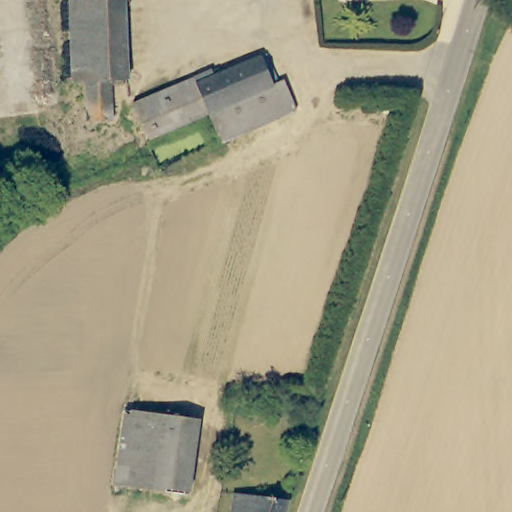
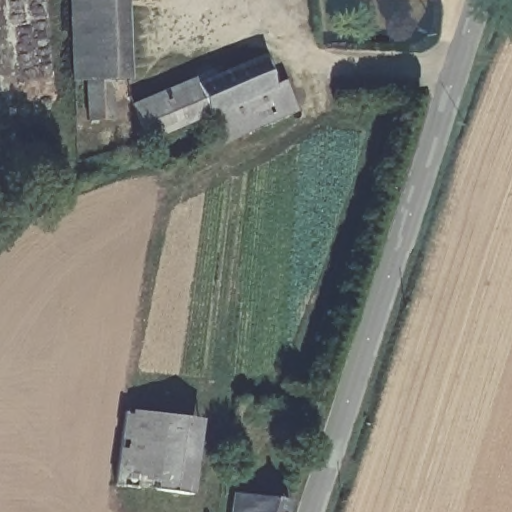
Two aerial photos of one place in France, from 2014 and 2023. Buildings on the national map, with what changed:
unchanged [(70,0),(125,0),(126,38),(126,74),(110,75),(112,115),(86,116),(86,102),(85,75),(73,76),(70,0)]
unchanged [(210,110),(146,138),(136,106),(212,72),(210,67),(217,65),(219,70),(263,51),(276,80),(210,110)]
unchanged [(292,107),(222,138),(210,110),(276,80),(283,77),(295,105),(296,106),(292,107)]
unchanged [(161,460),(197,464),(194,488),(119,479),(128,407),(167,412),(161,460)]
unchanged [(197,464),(161,460),(167,412),(202,416),(197,464)]
unchanged [(238,496),(255,498),(256,485),(281,488),(280,501),(291,502),(288,512),(235,512),(238,496)]

